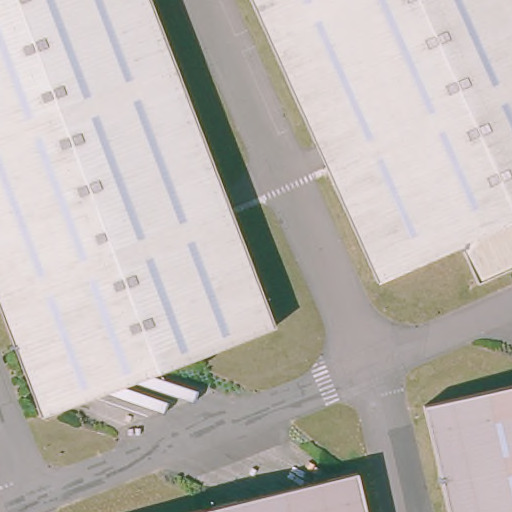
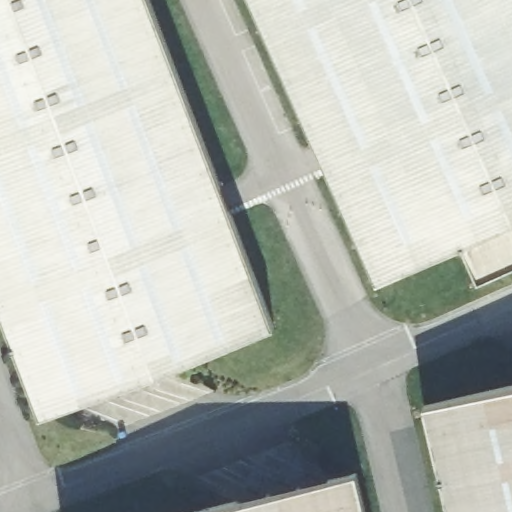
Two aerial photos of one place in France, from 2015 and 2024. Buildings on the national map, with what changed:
unchanged [(130,382),(62,406),(40,414),(11,338),(0,309),(0,0),(154,0),(215,165),(264,295),(276,329),(170,367),(130,382)]
unchanged [(378,283),(350,220),(251,0),(512,0),(512,223),(472,240),(378,283)]
unchanged [(489,279),(472,240),(512,223),(512,269),(489,279)]
unchanged [(431,435),(430,429),(423,401),(512,381),(512,512),(449,512),(431,435)]
unchanged [(355,468),(360,489),(365,512),(169,512),(355,468)]

